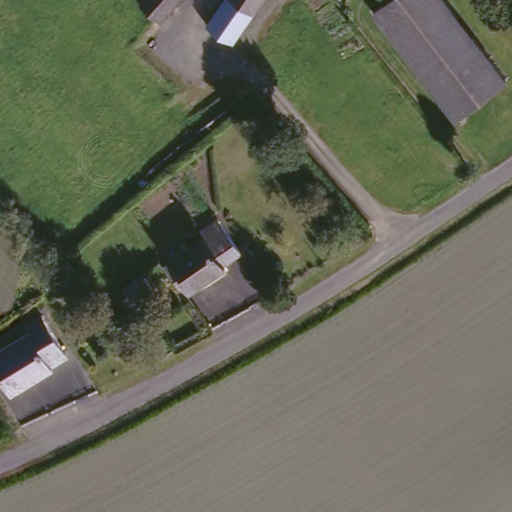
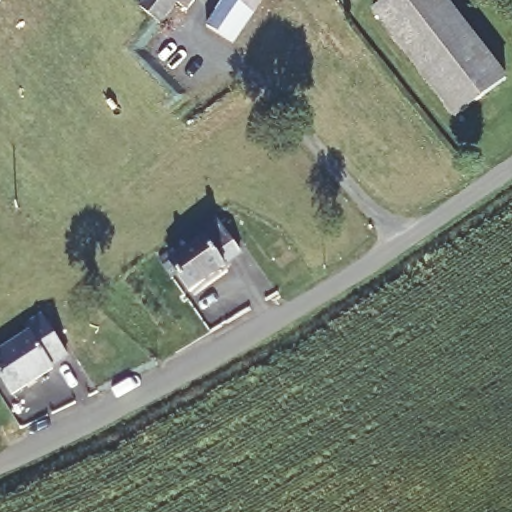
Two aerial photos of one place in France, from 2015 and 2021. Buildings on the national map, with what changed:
unchanged [(140,5),(143,2),(145,0),(176,0),(160,19),(157,21),(140,5)]
unchanged [(225,0),(262,0),(234,42),(208,25),(225,0)]
unchanged [(453,12),(507,77),(456,117),(372,17),(395,0),(444,0),(453,12)]
unchanged [(165,257),(219,218),(241,252),(225,264),(226,267),(191,292),(165,257)]
unchanged [(29,328),(49,319),(72,364),(55,373),(57,378),(12,398),(0,377),(0,354),(33,337),(29,328)]

